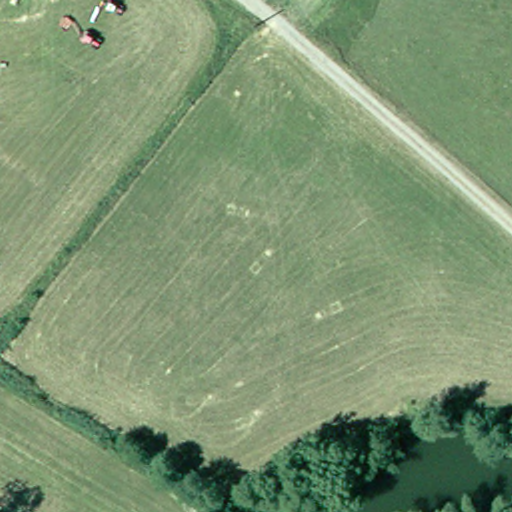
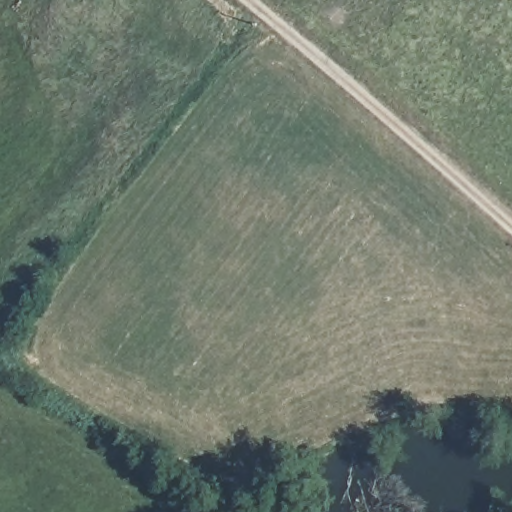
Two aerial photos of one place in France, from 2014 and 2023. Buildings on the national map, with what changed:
[]

